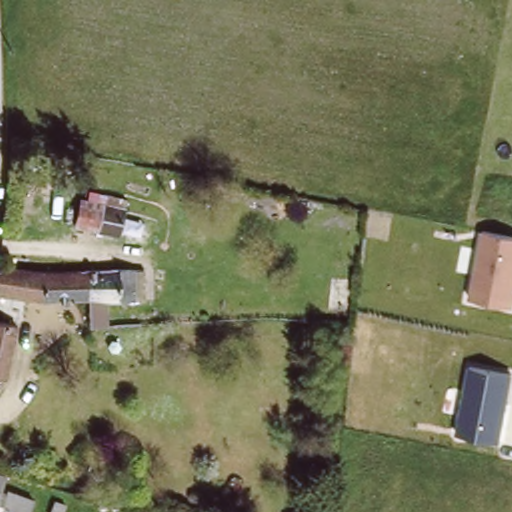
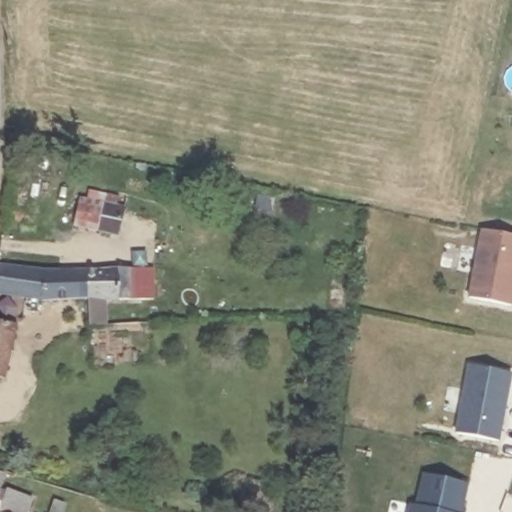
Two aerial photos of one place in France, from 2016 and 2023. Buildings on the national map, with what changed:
unchanged [(47,158),(43,172),(22,167),(25,153),(47,158)]
unchanged [(118,177),(115,186),(90,180),(93,171),(118,177)]
unchanged [(97,194),(113,197),(115,194),(133,200),(130,210),(124,235),(81,224),(87,199),(95,201),(97,194)]
unchanged [(512,307),(468,298),(480,230),(512,236),(512,307)]
unchanged [(2,267),(94,268),(94,299),(32,296),(0,295),(0,277),(2,267)]
unchanged [(94,268),(147,268),(147,298),(112,297),(112,322),(94,323),(94,299),(94,268)]
unchanged [(21,318),(10,375),(0,374),(0,314),(21,318)]
unchanged [(512,381),(500,442),(455,433),(467,366),(512,373),(512,381)]
unchanged [(0,482),(0,470),(10,473),(7,485),(0,482)]
new [(410,503),(415,504),(422,473),(470,485),(463,512),(407,512),(410,503)]
unchanged [(5,487),(0,505),(0,486),(5,487)]
unchanged [(10,487),(37,496),(32,512),(0,512),(10,487)]
unchanged [(66,502),(63,512),(51,512),(55,499),(66,502)]

